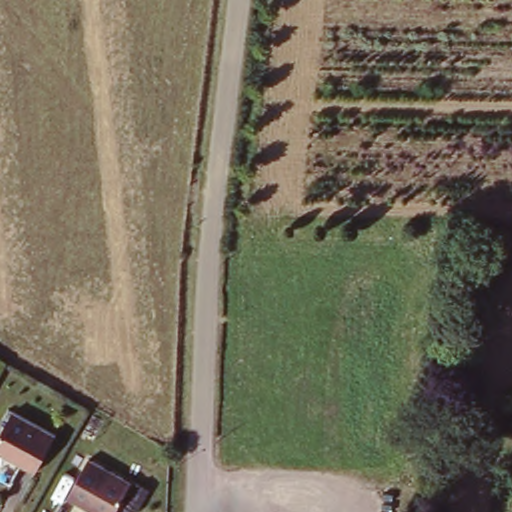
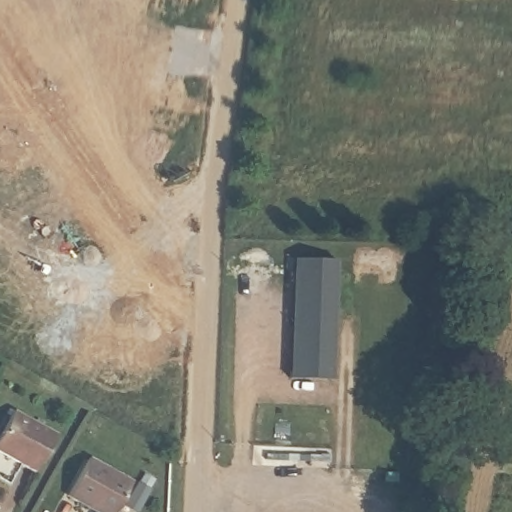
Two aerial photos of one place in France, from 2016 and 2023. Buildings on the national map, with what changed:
new [(333,254),(328,371),(287,369),(292,251),(333,254)]
unchanged [(15,413),(59,440),(38,476),(0,454),(0,443),(15,413)]
unchanged [(132,487),(119,512),(85,512),(69,503),(90,464),(132,487)]

